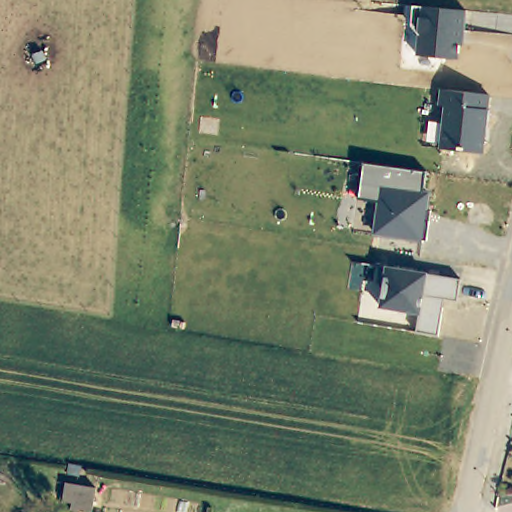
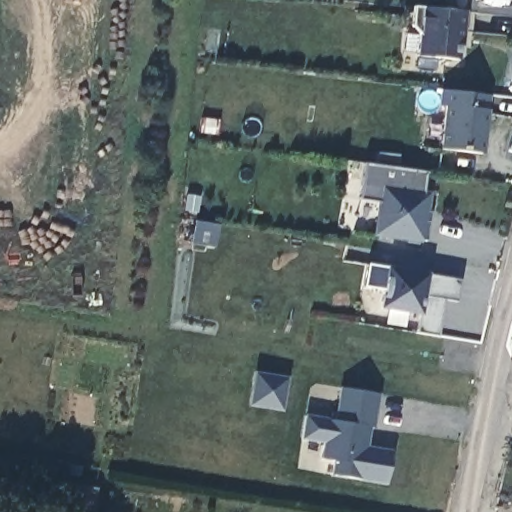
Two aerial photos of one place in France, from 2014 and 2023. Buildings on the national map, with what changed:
unchanged [(412,5),(422,6),(465,10),(463,44),(458,45),(458,57),(416,54),(418,32),(410,25),(412,5)]
unchanged [(440,90),(489,94),(482,153),(439,148),(443,105),(437,104),(440,90)]
unchanged [(425,170),(422,190),(429,192),(427,208),(430,208),(426,239),(373,235),(378,200),(359,198),(364,163),(425,170)]
unchanged [(386,265),(427,272),(459,277),(456,299),(442,297),(436,332),(415,330),(419,313),(380,307),(386,265)]
new [(256,369),(285,374),(280,403),(264,400),(251,398),(254,378),(256,369)]
new [(373,428),(370,428),(367,445),(393,450),(388,484),(329,474),(332,459),(321,457),(324,441),(299,437),(304,413),(334,418),(339,387),(379,393),(373,428)]
unchanged [(68,512),(69,485),(95,489),(94,512),(68,512)]

